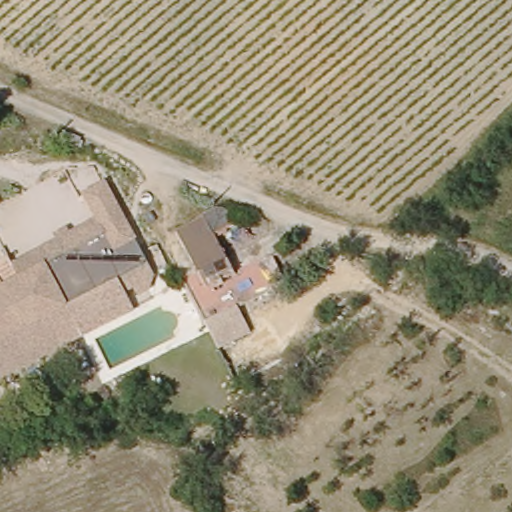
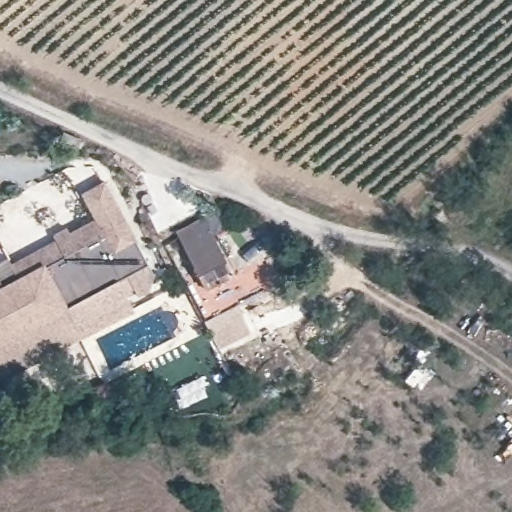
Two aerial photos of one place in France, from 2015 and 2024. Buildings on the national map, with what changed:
unchanged [(52,236),(97,214),(83,188),(105,177),(149,268),(83,298),(52,236)]
unchanged [(190,266),(186,256),(172,226),(218,207),(243,218),(219,228),(216,243),(229,273),(200,287),(190,266)]
unchanged [(83,298),(0,337),(0,259),(52,236),(83,298)]
unchanged [(149,268),(158,283),(88,318),(0,358),(0,337),(83,298),(149,268)]
unchanged [(238,305),(250,334),(218,350),(205,321),(238,305)]

